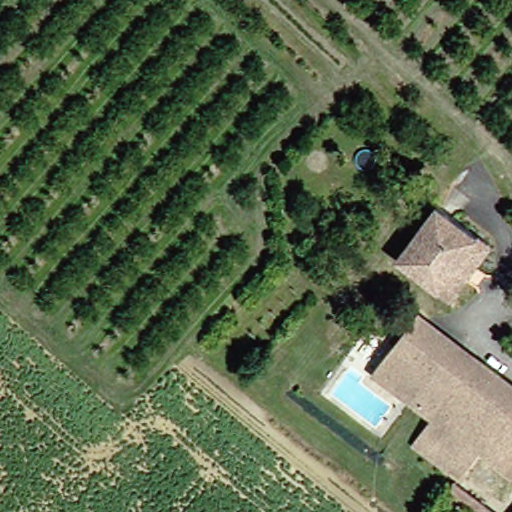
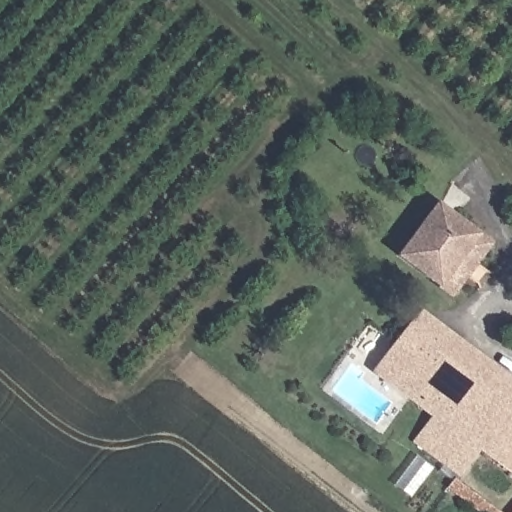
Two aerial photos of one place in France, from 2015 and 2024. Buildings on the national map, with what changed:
unchanged [(435,202),(492,244),(453,295),(399,256),(435,202)]
unchanged [(418,314),(512,385),(512,473),(511,475),(475,449),(456,474),(416,442),(432,416),(377,373),(418,314)]

